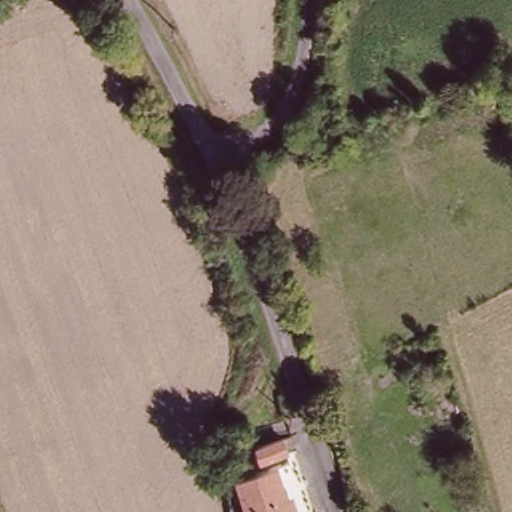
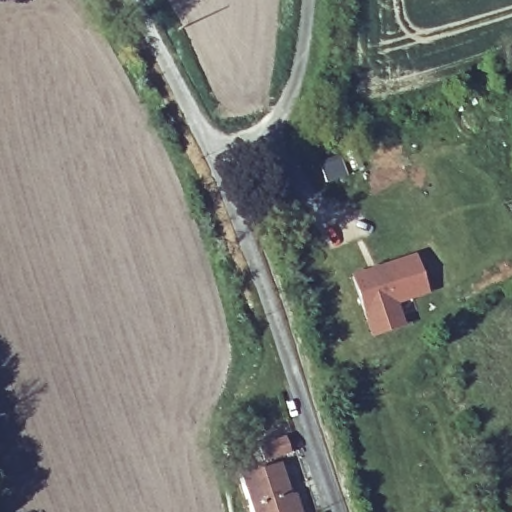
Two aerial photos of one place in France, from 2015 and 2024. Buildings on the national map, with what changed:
new [(415,253),(428,293),(397,304),(405,325),(370,338),(348,276),(415,253)]
unchanged [(285,444),(289,460),(265,468),(260,452),(285,444)]
unchanged [(289,512),(245,512),(238,487),(278,474),(289,512)]

